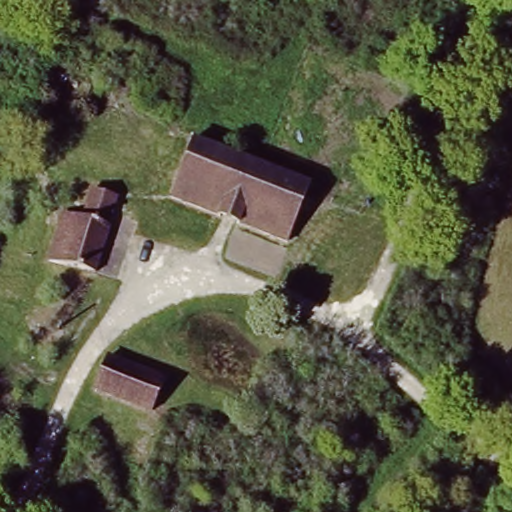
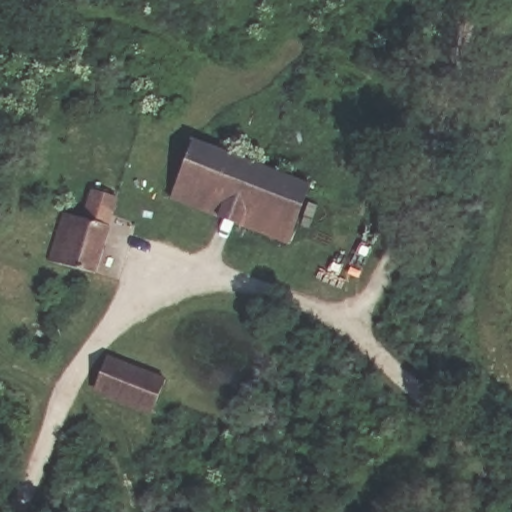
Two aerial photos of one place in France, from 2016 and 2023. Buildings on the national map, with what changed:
unchanged [(192,145),(308,183),(290,243),(171,205),(192,145)]
unchanged [(67,213),(87,217),(96,185),(115,201),(97,272),(79,266),(76,278),(61,273),(64,262),(56,260),(67,213)]
unchanged [(150,415),(95,390),(112,353),(166,375),(150,415)]

